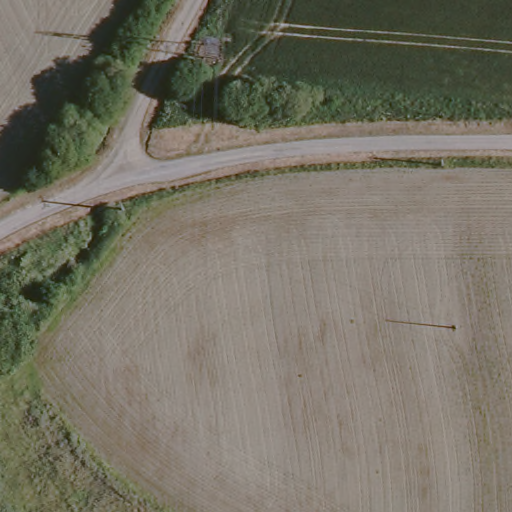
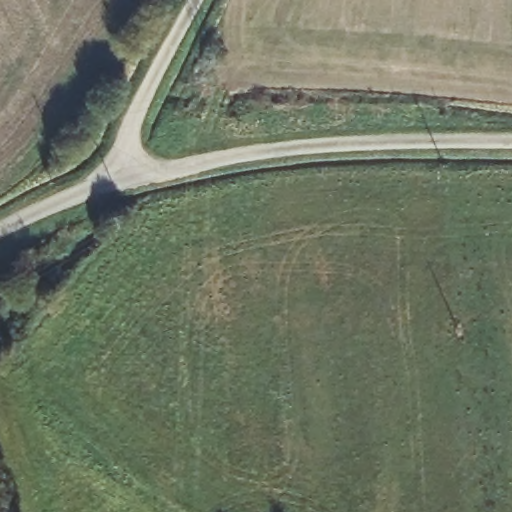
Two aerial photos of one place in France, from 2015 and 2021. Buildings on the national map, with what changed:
[]

